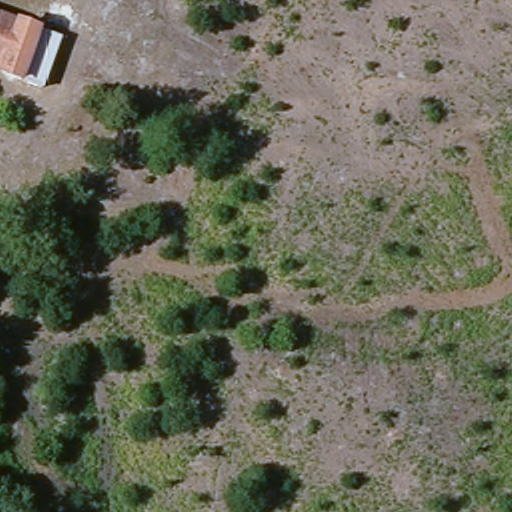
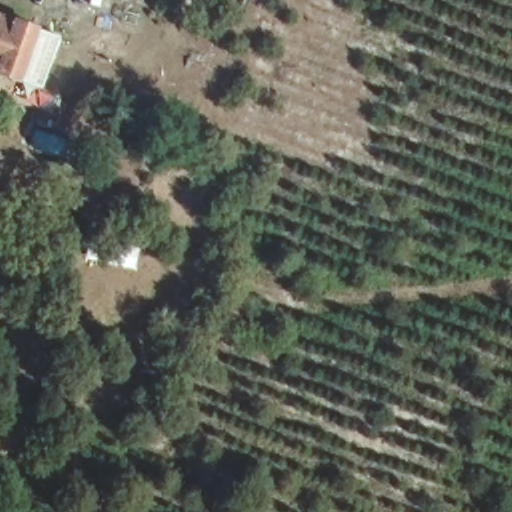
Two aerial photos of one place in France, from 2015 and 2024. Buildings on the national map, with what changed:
unchanged [(35,81),(13,72),(10,76),(0,72),(0,14),(53,32),(35,81)]

